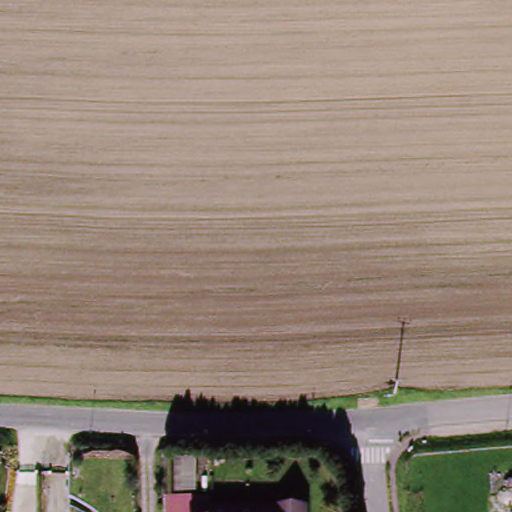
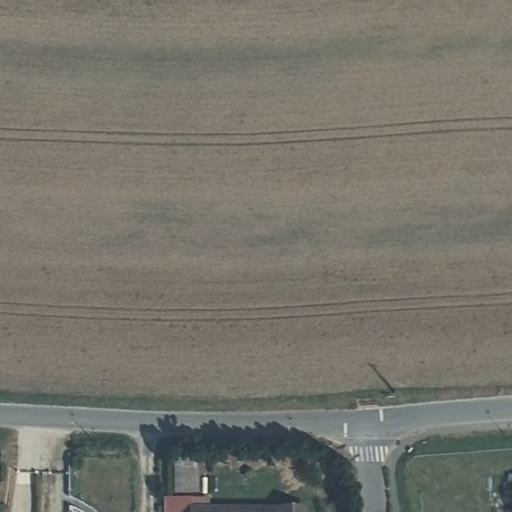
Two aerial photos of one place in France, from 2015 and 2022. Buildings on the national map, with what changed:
unchanged [(197,463),(197,487),(173,487),(173,463),(197,463)]
unchanged [(212,506),(212,512),(170,512),(170,505),(212,506)]

